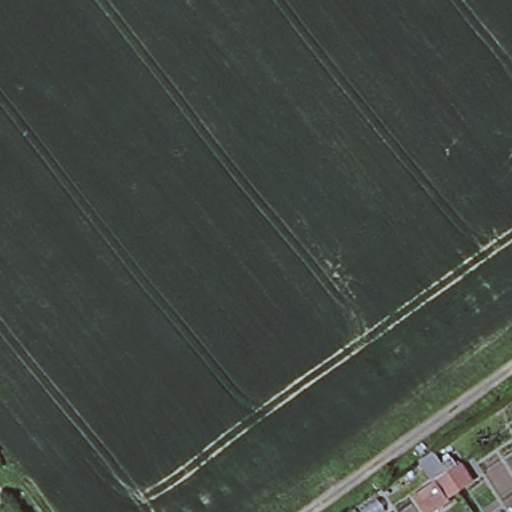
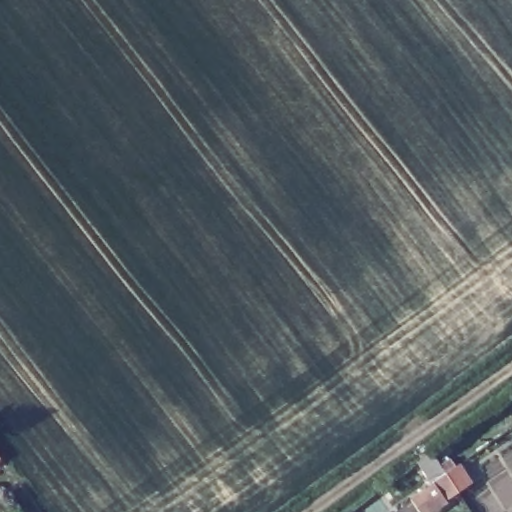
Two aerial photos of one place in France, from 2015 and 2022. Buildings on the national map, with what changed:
unchanged [(459,463),(470,481),(458,489),(445,498),(434,480),(447,471),(459,463)]

